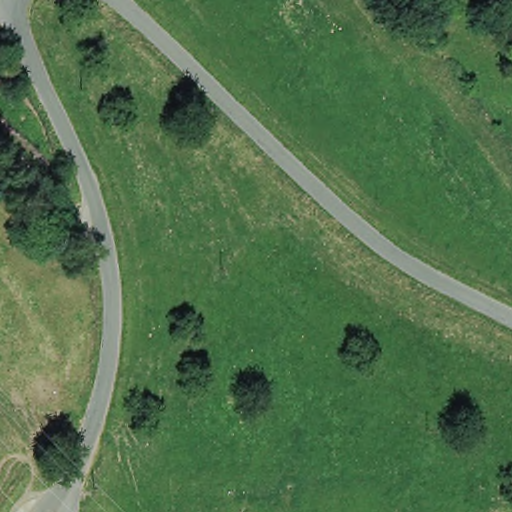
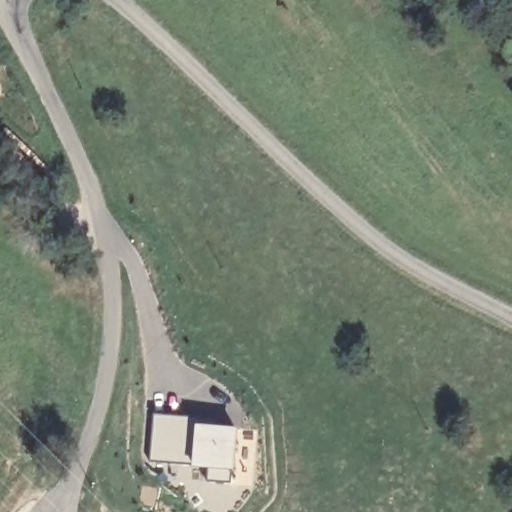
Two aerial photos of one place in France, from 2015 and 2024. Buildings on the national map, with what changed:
new [(235,430),(232,475),(230,487),(205,485),(204,474),(188,472),(187,466),(149,464),(152,415),(195,419),(195,428),(211,429),(235,430)]

